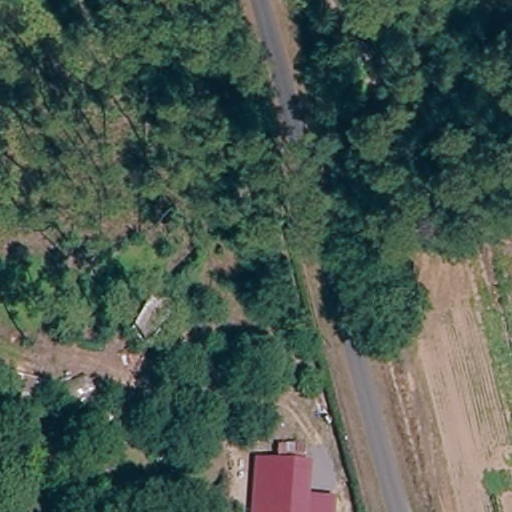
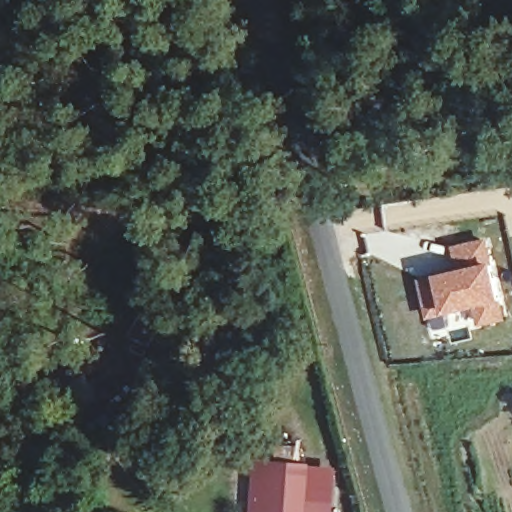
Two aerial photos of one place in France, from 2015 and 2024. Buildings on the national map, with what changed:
new [(455,269),(451,245),(489,236),(507,321),(477,328),(473,309),(425,320),(416,277),(455,269)]
unchanged [(308,471),(305,512),(260,512),(263,468),(277,469),(308,471)]

